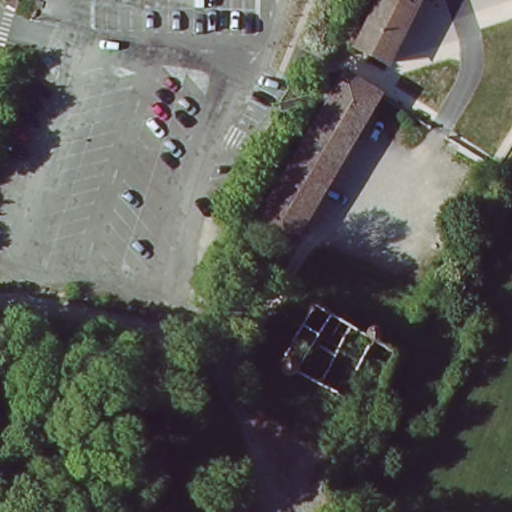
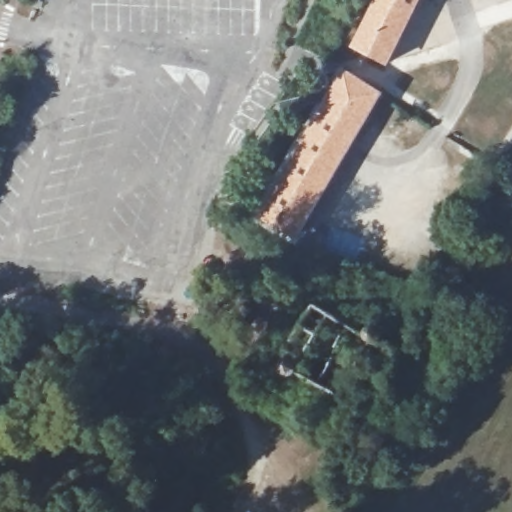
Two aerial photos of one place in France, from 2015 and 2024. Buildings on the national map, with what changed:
unchanged [(359,46),(382,0),(423,0),(393,64),(359,46)]
unchanged [(347,71),(380,91),(295,235),(262,215),(347,71)]

